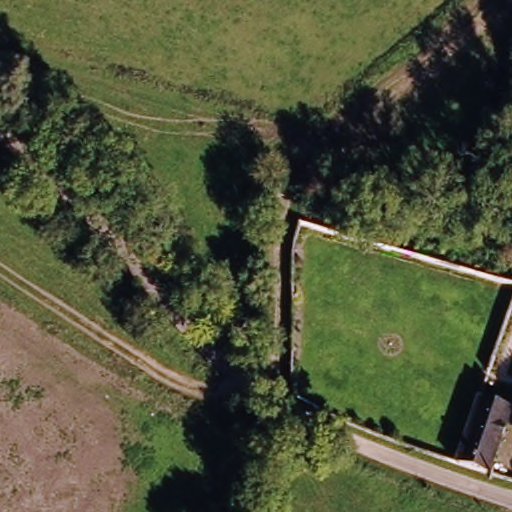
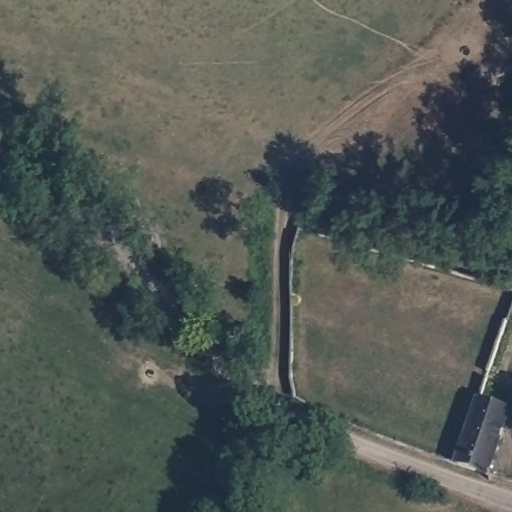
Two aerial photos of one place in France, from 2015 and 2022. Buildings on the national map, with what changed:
unchanged [(509,412),(498,439),(486,473),(456,463),(478,406),(480,401),(509,412)]

